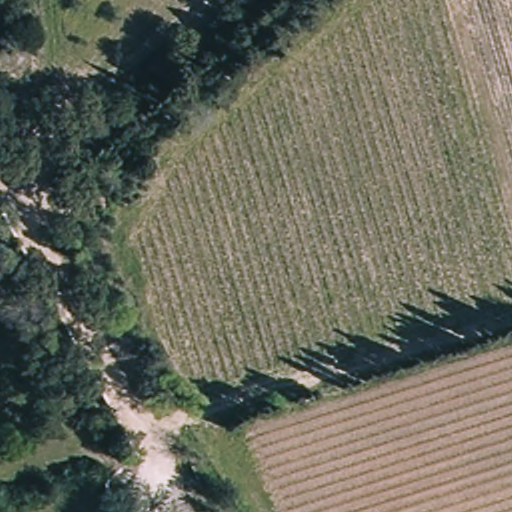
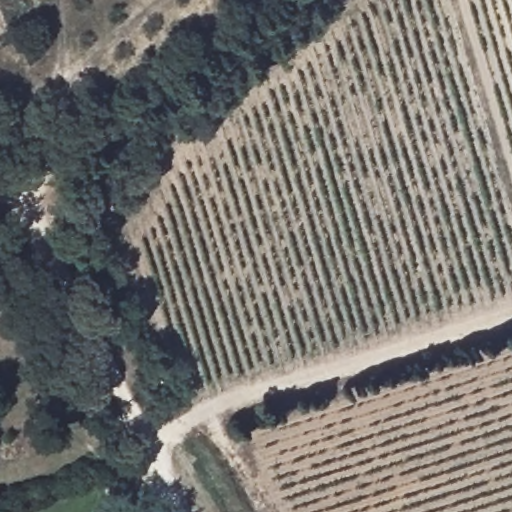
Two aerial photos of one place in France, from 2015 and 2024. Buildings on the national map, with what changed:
unchanged [(110,193),(117,207),(106,212),(99,200),(110,193)]

